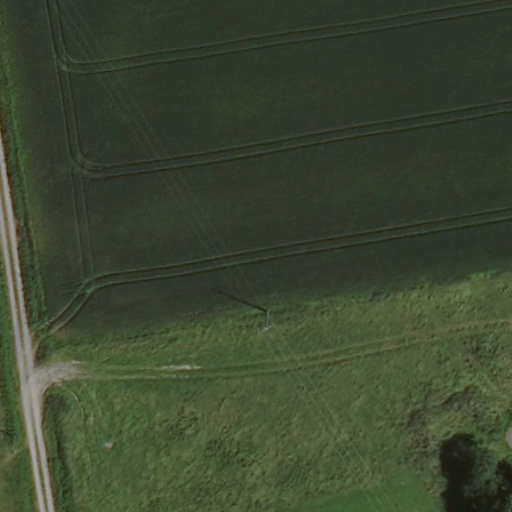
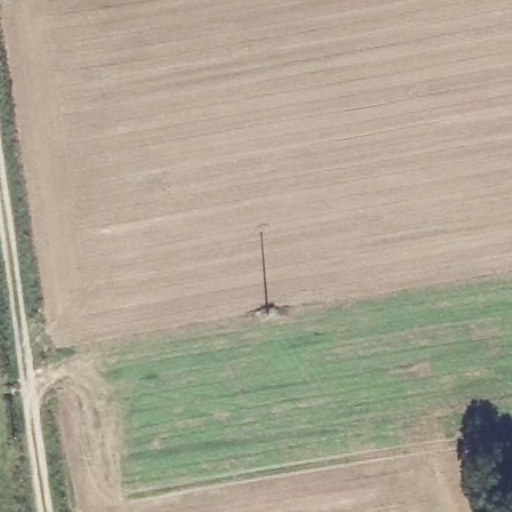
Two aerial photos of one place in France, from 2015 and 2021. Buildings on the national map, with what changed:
[]

